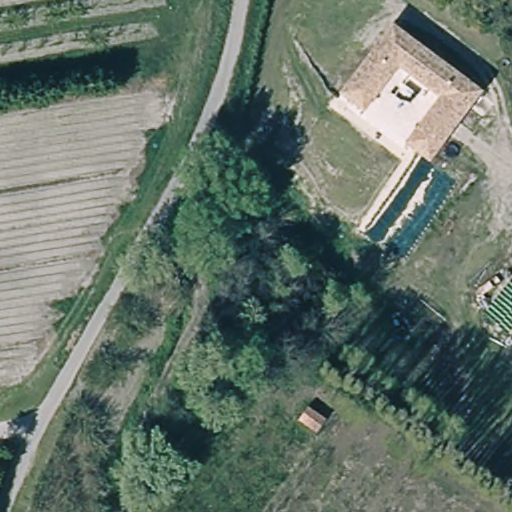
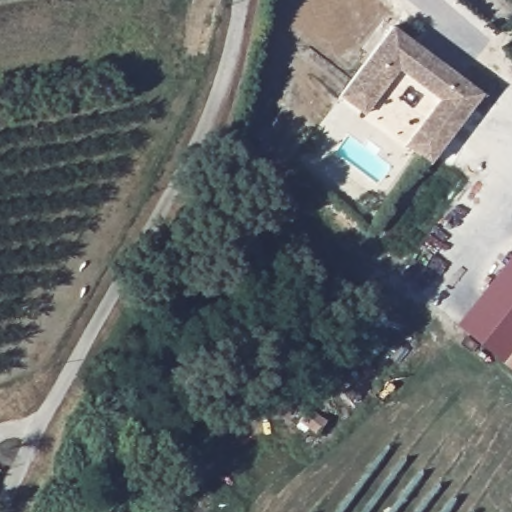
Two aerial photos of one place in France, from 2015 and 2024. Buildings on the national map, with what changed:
unchanged [(485,92),(432,162),(340,95),(393,23),(485,92)]
new [(455,325),(512,254),(512,371),(455,325)]
unchanged [(327,420),(313,437),(291,419),(306,402),(327,420)]
unchanged [(92,443),(101,428),(119,434),(152,445),(147,458),(114,449),(92,443)]

